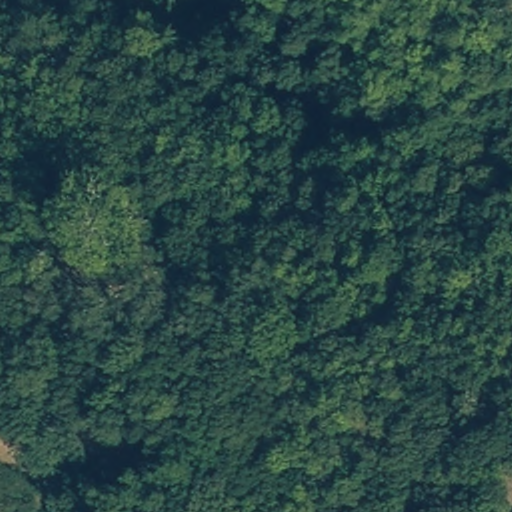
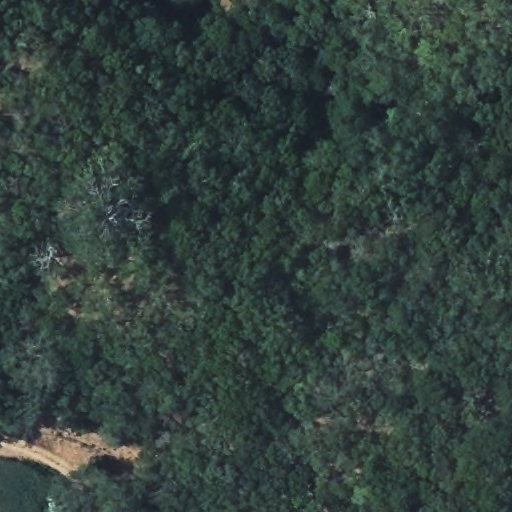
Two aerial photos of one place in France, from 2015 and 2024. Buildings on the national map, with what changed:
unchanged [(90,512),(50,512),(49,509),(85,497),(90,512)]

